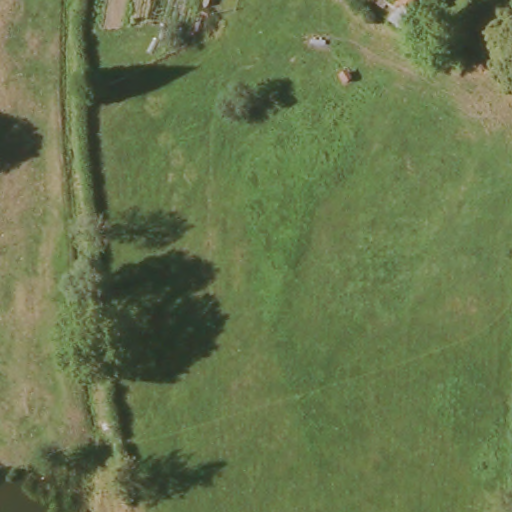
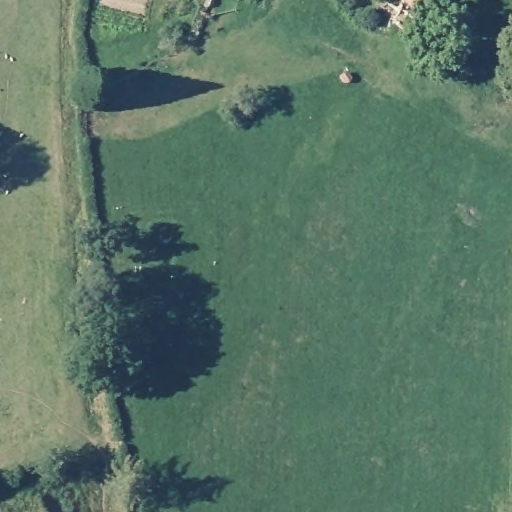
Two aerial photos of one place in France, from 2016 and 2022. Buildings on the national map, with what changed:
unchanged [(409,36),(384,18),(393,7),(384,0),(435,0),(409,36)]

